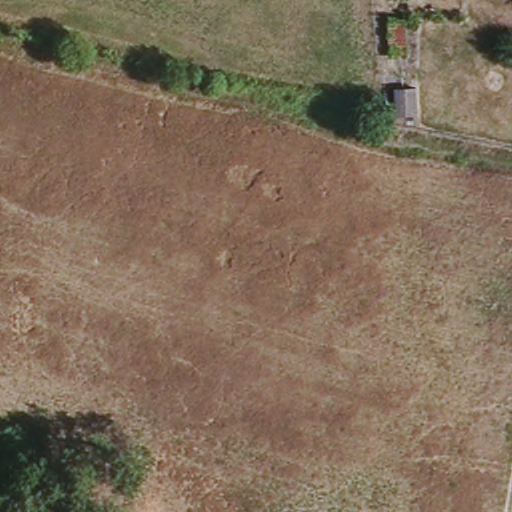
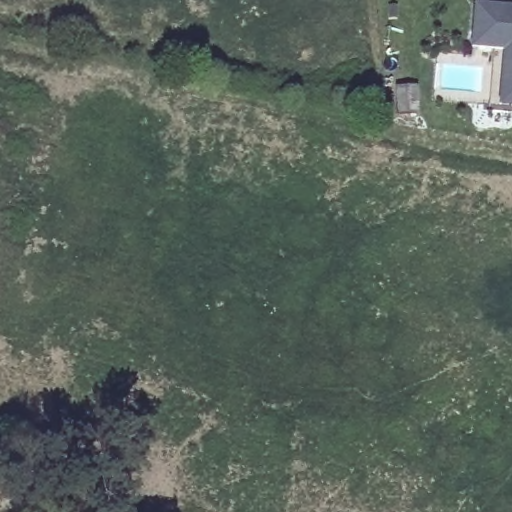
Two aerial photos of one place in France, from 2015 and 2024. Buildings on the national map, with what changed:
new [(504,49),(472,46),(474,6),(512,8),(512,104),(499,104),(502,73),(504,49)]
unchanged [(391,21),(404,20),(408,54),(394,56),(391,21)]
unchanged [(416,88),(418,113),(399,114),(398,89),(416,88)]

